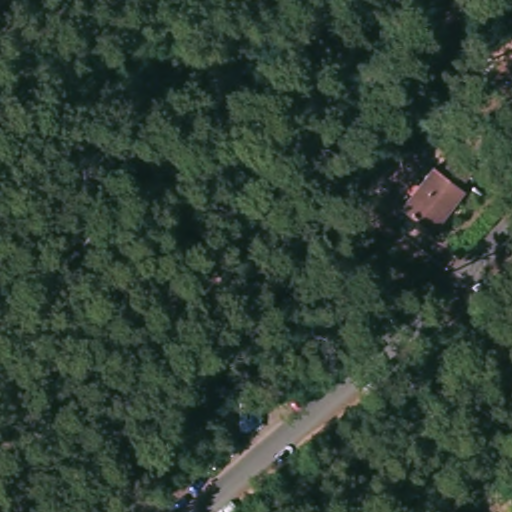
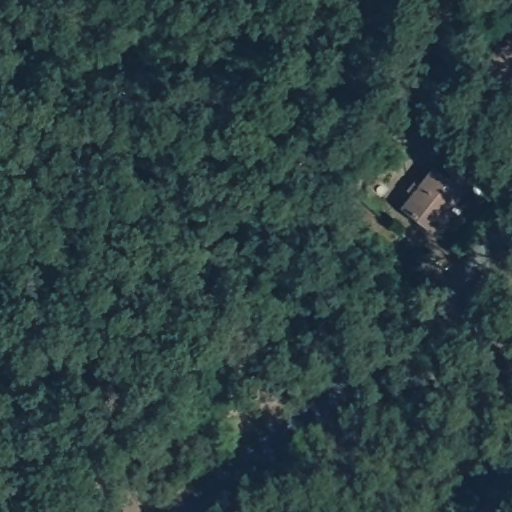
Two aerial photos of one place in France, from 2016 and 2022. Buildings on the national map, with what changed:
unchanged [(512,14),(512,69),(485,48),(512,14)]
unchanged [(443,177),(457,157),(473,171),(459,189),(463,194),(436,231),(408,209),(435,171),(443,177)]

